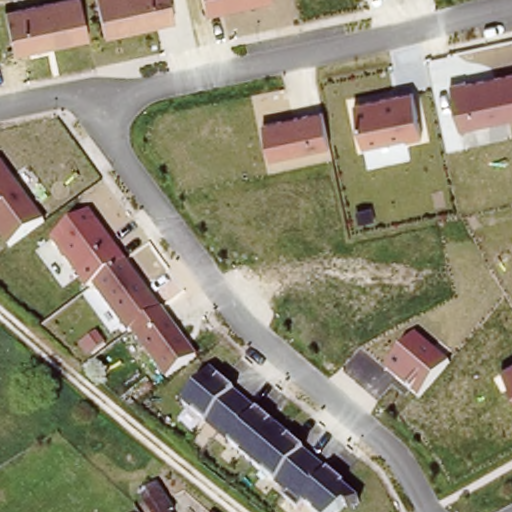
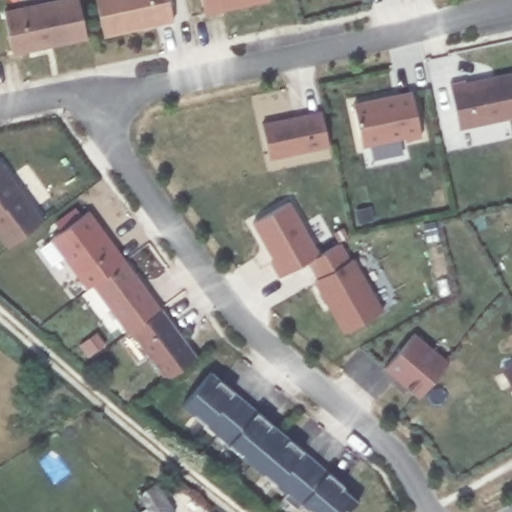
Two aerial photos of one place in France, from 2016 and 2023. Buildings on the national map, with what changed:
unchanged [(55,0),(81,0),(88,39),(14,55),(6,10),(55,0)]
unchanged [(104,35),(97,0),(170,0),(174,20),(104,35)]
unchanged [(272,0),(272,2),(206,15),(203,0),(272,0)]
unchanged [(452,85),(512,73),(512,118),(459,129),(452,85)]
unchanged [(422,135),(363,146),(354,102),(413,89),(422,135)]
unchanged [(264,124),(324,111),(330,146),(270,160),(264,124)]
unchanged [(0,157),(0,156),(45,219),(9,247),(0,235),(0,157)]
new [(341,333),(314,281),(318,279),(308,261),(279,277),(271,263),(274,261),(253,222),(290,201),(319,255),(341,242),(350,261),(354,258),(384,311),(341,333)]
unchanged [(118,249),(77,275),(49,238),(90,209),(118,249)]
unchanged [(198,353),(164,380),(95,286),(88,291),(77,275),(118,249),(198,353)]
unchanged [(386,372),(416,335),(449,361),(419,398),(386,372)]
unchanged [(501,370),(512,363),(512,386),(501,370)]
unchanged [(209,370),(233,390),(258,410),(303,450),(330,472),(358,498),(338,512),(310,512),(299,503),(273,480),(229,445),(204,424),(181,405),(209,370)]
unchanged [(148,497),(167,488),(179,512),(154,512),(148,497)]

